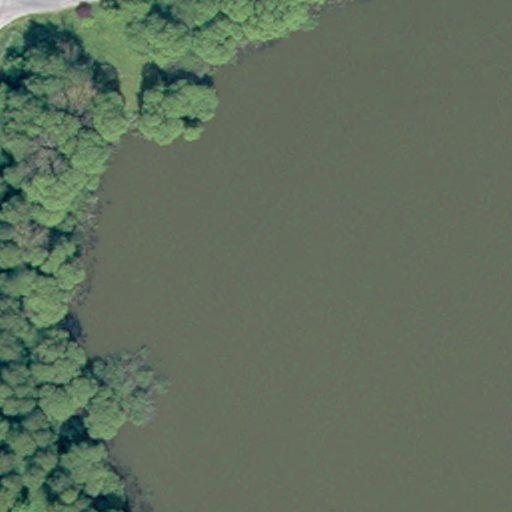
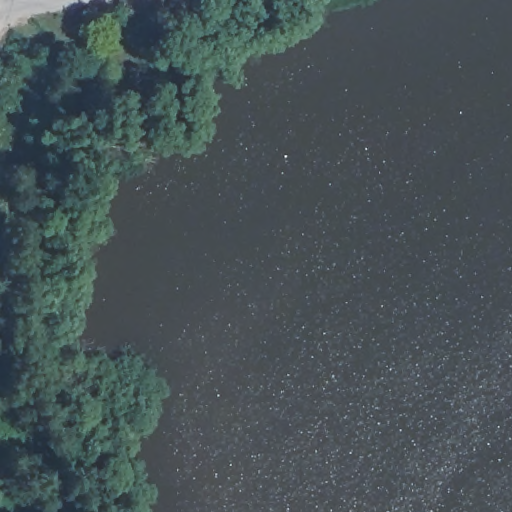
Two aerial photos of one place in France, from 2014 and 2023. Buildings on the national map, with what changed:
[]

